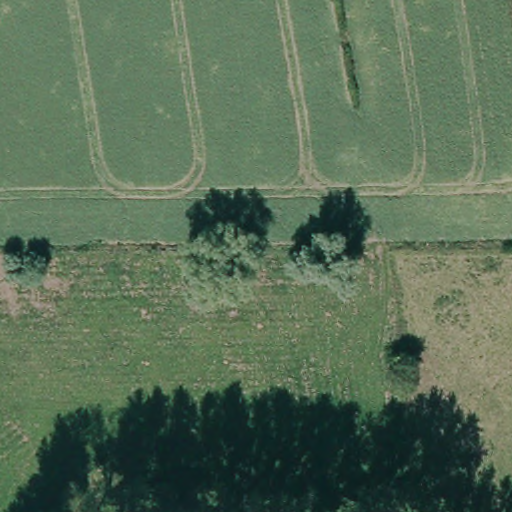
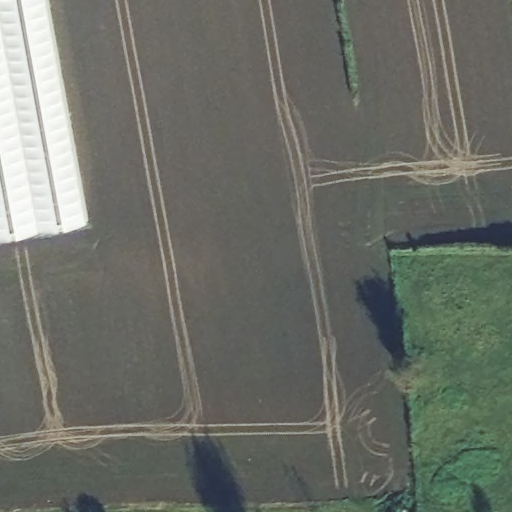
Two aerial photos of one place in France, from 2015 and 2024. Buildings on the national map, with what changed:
new [(0,236),(0,0),(47,0),(87,221),(0,236)]

